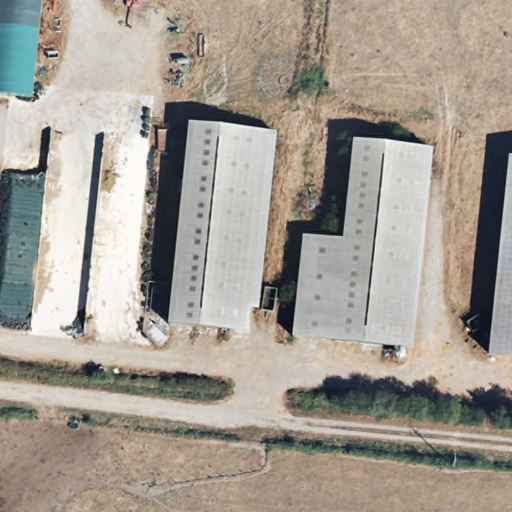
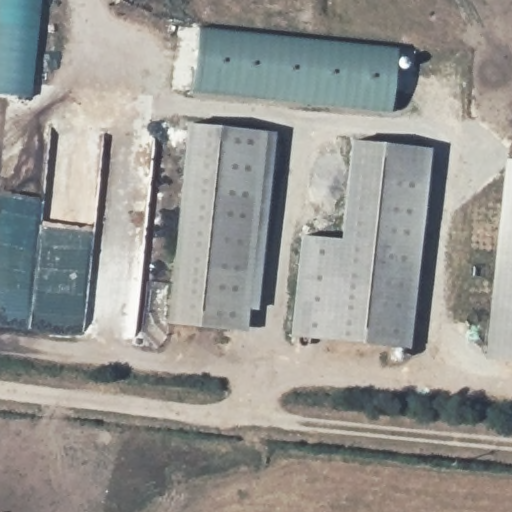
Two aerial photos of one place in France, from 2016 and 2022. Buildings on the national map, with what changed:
unchanged [(31,97),(0,93),(0,0),(41,0),(31,97)]
new [(398,49),(391,113),(192,92),(200,29),(398,49)]
unchanged [(191,127),(267,135),(246,335),(170,327),(191,127)]
unchanged [(432,150),(409,352),(287,341),(300,237),(340,240),(350,142),(432,150)]
unchanged [(512,362),(488,359),(510,158),(512,158),(512,362)]

